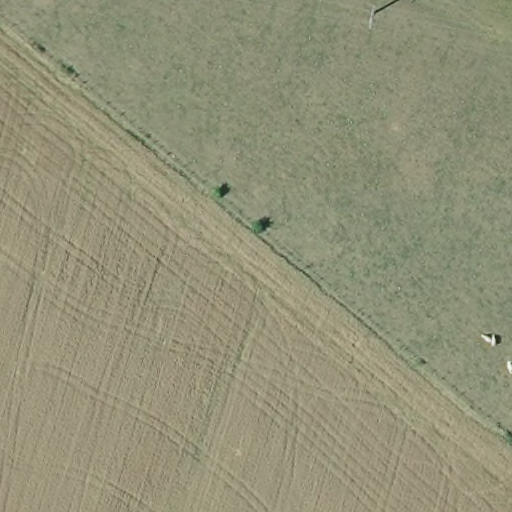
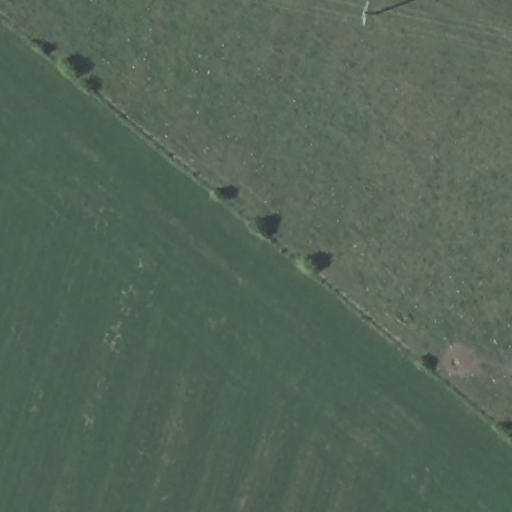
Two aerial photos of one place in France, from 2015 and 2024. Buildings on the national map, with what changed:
[]

